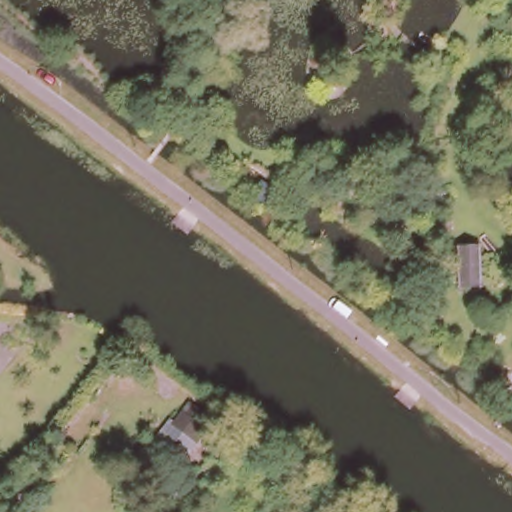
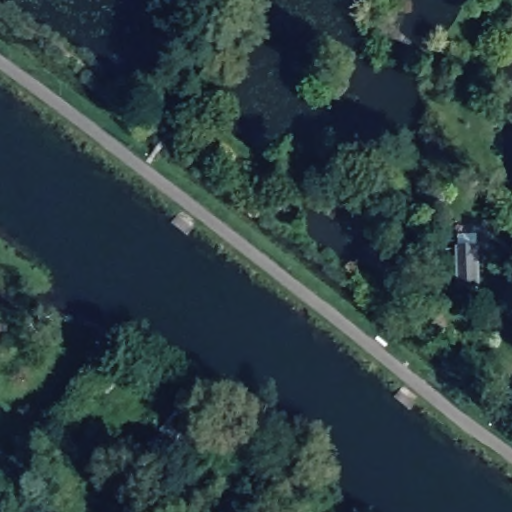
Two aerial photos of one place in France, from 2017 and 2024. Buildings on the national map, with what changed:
unchanged [(478,251),(480,286),(461,286),(459,252),(478,251)]

